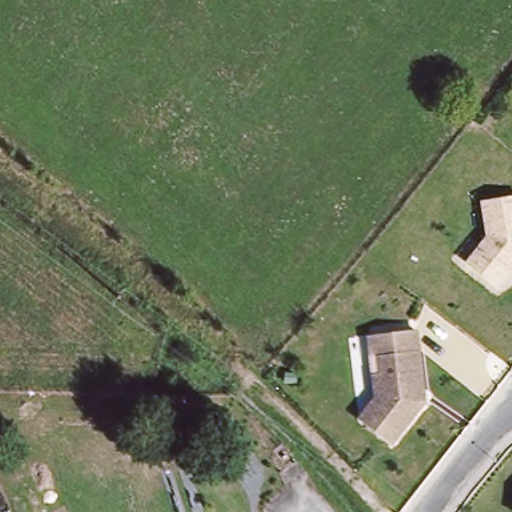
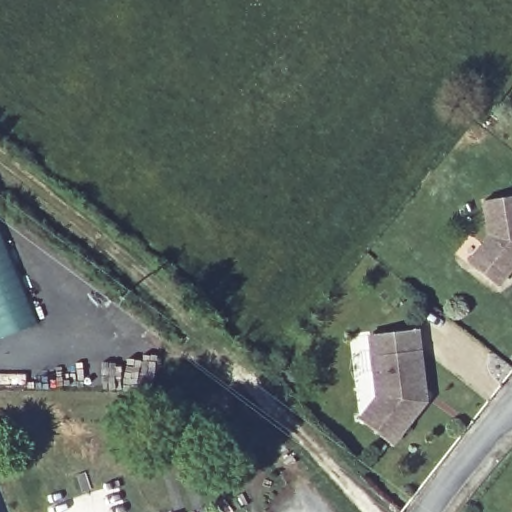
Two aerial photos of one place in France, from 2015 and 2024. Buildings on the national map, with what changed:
unchanged [(465,262),(487,234),(481,199),(512,195),(512,266),(496,285),(465,262)]
new [(39,322),(0,338),(0,228),(39,322)]
unchanged [(374,357),(371,335),(419,329),(428,401),(394,443),(362,419),(380,395),(377,373),(385,372),(382,356),(374,357)]

